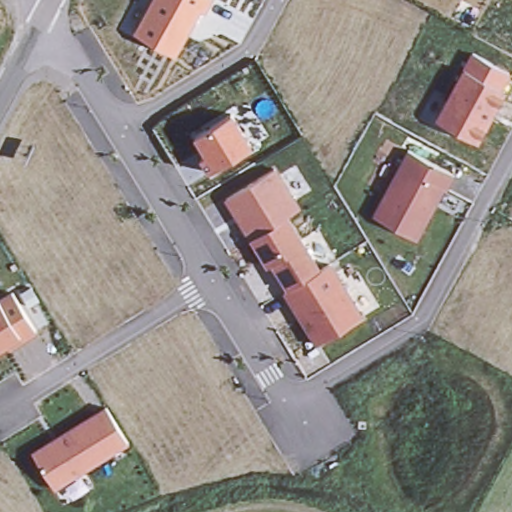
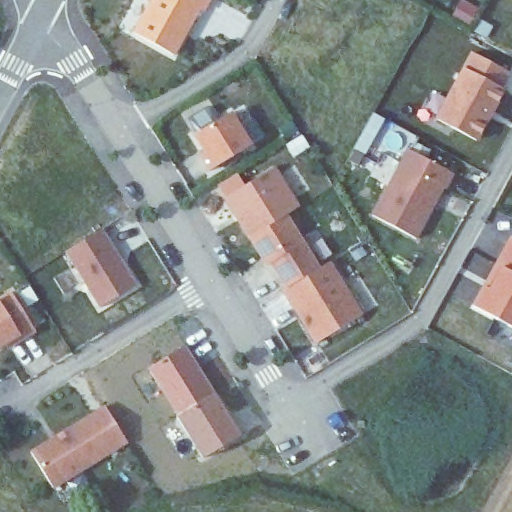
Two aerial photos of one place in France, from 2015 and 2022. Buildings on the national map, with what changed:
unchanged [(206,13),(201,11),(176,57),(131,33),(149,0),(213,0),(206,13)]
unchanged [(512,72),(512,78),(506,90),(508,92),(481,146),(432,121),(471,49),(512,72)]
unchanged [(233,111),(253,147),(206,172),(198,159),(203,155),(191,137),(233,111)]
unchanged [(457,173),(446,192),(442,190),(416,242),(369,215),(406,147),(457,173)]
unchanged [(303,208),(289,217),(321,270),(333,261),(365,316),(317,346),(269,265),(263,269),(223,198),(276,166),(303,208)]
new [(138,286),(99,309),(64,251),(103,229),(138,286)]
new [(512,240),(512,328),(472,307),(484,287),(489,289),(500,266),(511,239),(512,240)]
unchanged [(0,353),(0,294),(12,286),(35,332),(0,353)]
new [(241,436),(203,458),(148,369),(186,345),(241,436)]
unchanged [(129,445),(53,490),(28,449),(105,402),(129,445)]

